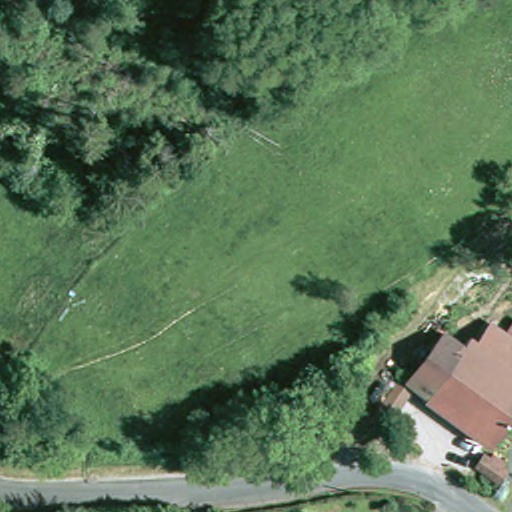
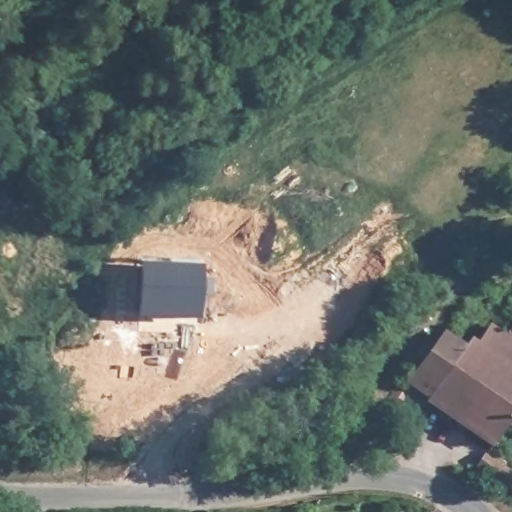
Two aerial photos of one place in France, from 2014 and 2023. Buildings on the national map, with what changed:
new [(140,265),(200,268),(200,278),(207,278),(205,316),(202,317),(196,333),(137,331),(140,265)]
unchanged [(439,413),(440,411),(467,357),(470,350),(478,353),(488,335),(512,346),(512,450),(439,413)]
unchanged [(467,357),(440,411),(420,401),(416,399),(443,345),(446,347),(467,357)]
unchanged [(403,444),(401,443),(389,436),(410,401),(418,405),(422,408),(403,444)]
unchanged [(512,457),(512,477),(490,466),(497,450),(512,457)]

